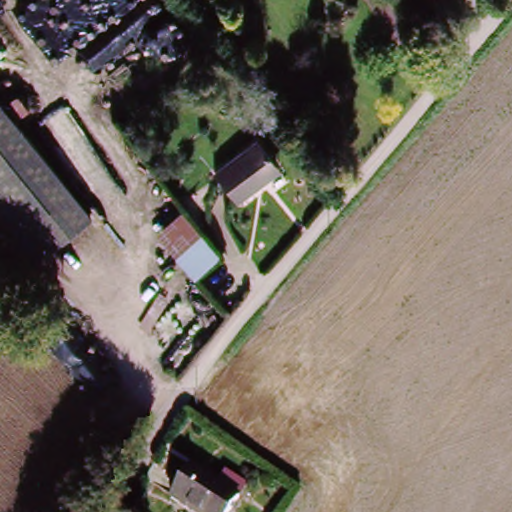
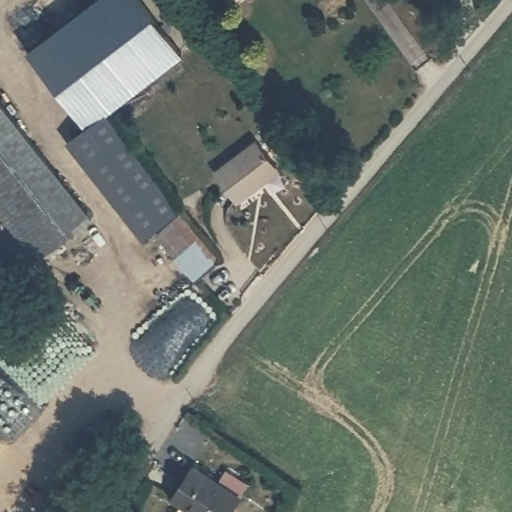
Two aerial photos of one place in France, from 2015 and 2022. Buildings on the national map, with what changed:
new [(88,0),(142,0),(180,49),(103,108),(83,124),(24,49),(88,0)]
unchanged [(1,97),(0,98),(0,95),(1,97)]
unchanged [(51,253),(0,186),(0,98),(1,97),(95,220),(51,253)]
new [(83,124),(103,108),(175,205),(147,227),(75,129),(83,124)]
unchanged [(258,183),(233,201),(213,174),(256,141),(274,165),(276,169),(258,183)]
unchanged [(51,253),(40,262),(0,209),(0,186),(51,253)]
unchanged [(185,212),(203,235),(180,255),(162,232),(185,212)]
unchanged [(196,466),(243,499),(235,512),(193,512),(175,498),(196,466)]

